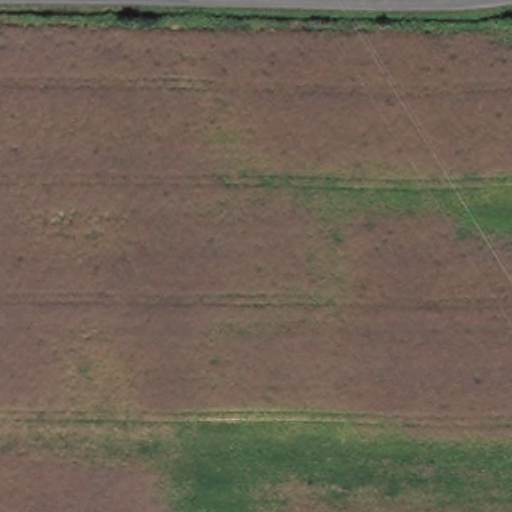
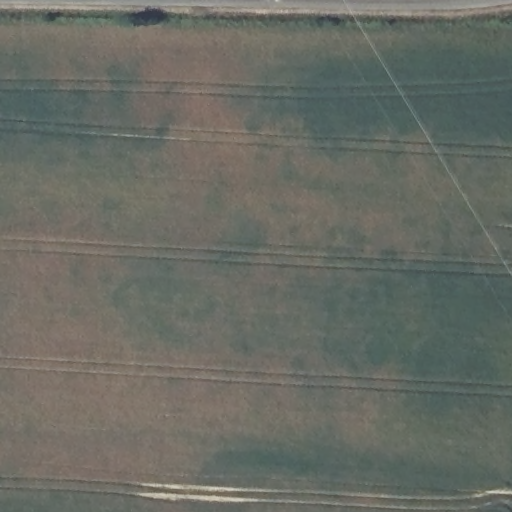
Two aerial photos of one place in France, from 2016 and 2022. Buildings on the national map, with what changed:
[]

